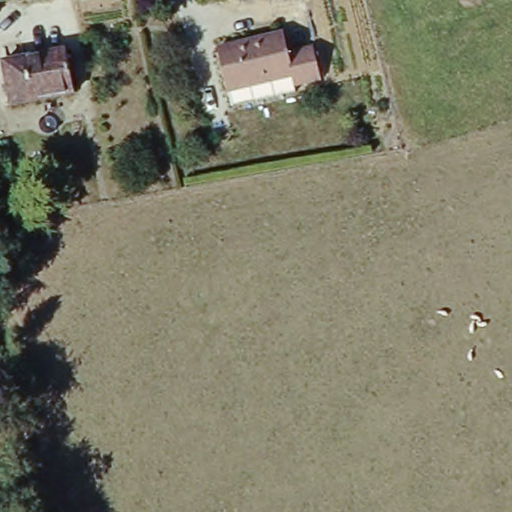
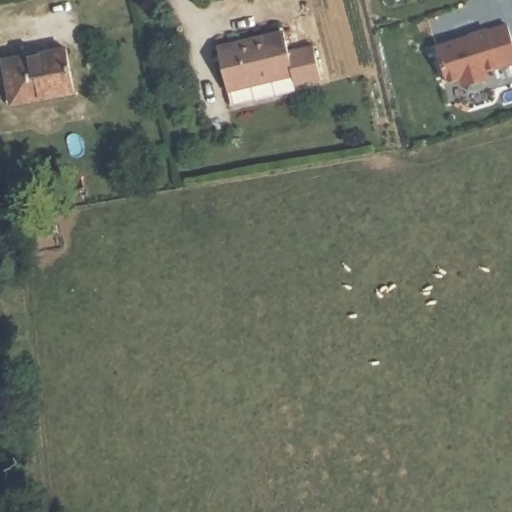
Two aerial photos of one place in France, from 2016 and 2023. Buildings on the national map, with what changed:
unchanged [(235,0),(222,3),(222,0),(235,0)]
new [(504,21),(512,44),(512,59),(482,68),(484,75),(483,79),(466,84),(461,83),(459,75),(444,80),(433,46),(504,21)]
unchanged [(237,107),(232,93),(227,94),(217,52),(280,37),(285,54),(313,48),(323,84),(293,91),(293,96),(237,107)]
unchanged [(67,53),(79,97),(15,112),(4,69),(67,53)]

